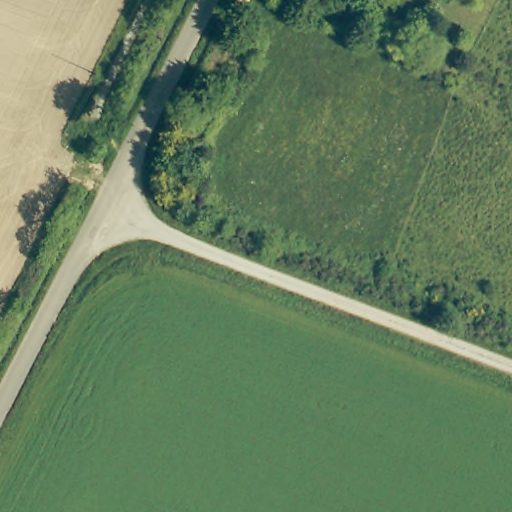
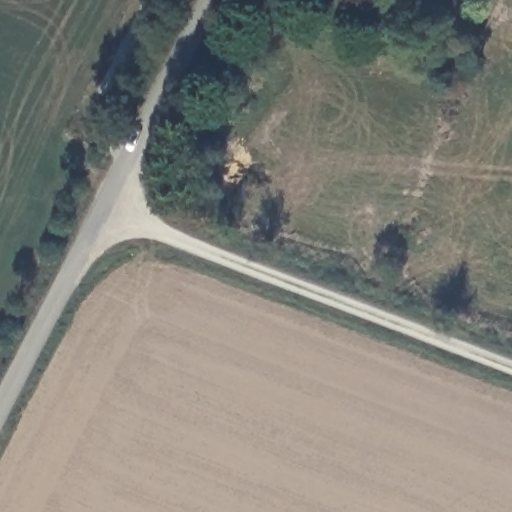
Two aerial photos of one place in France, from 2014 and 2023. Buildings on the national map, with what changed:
[]

